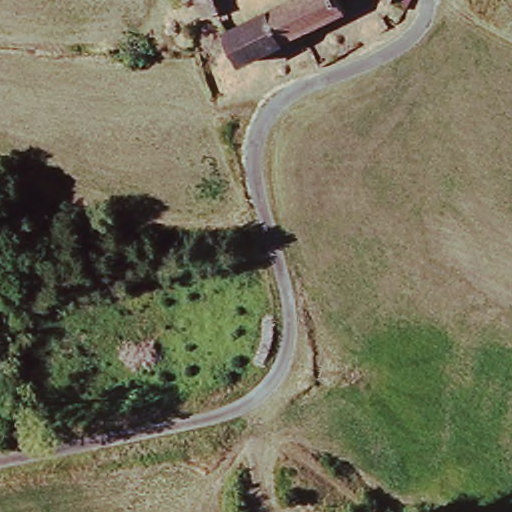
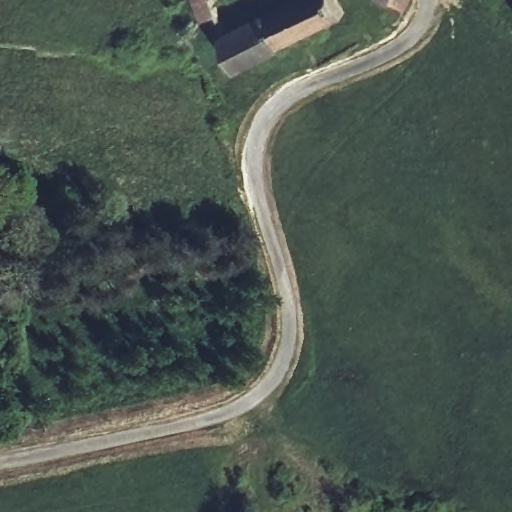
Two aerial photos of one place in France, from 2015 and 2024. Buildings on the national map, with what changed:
unchanged [(217,0),(224,14),(210,21),(200,0),(217,0)]
unchanged [(290,0),(334,0),(341,14),(236,66),(221,35),(290,0)]

